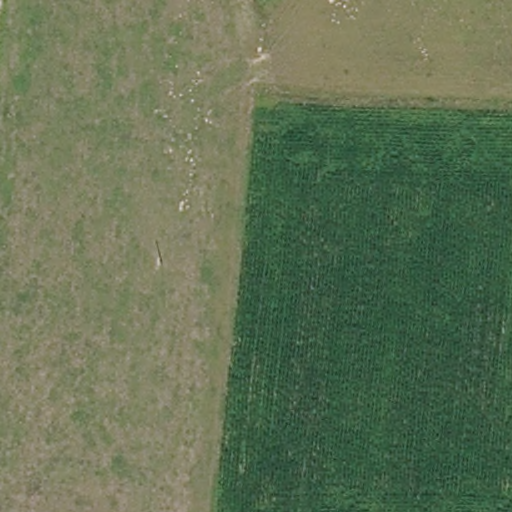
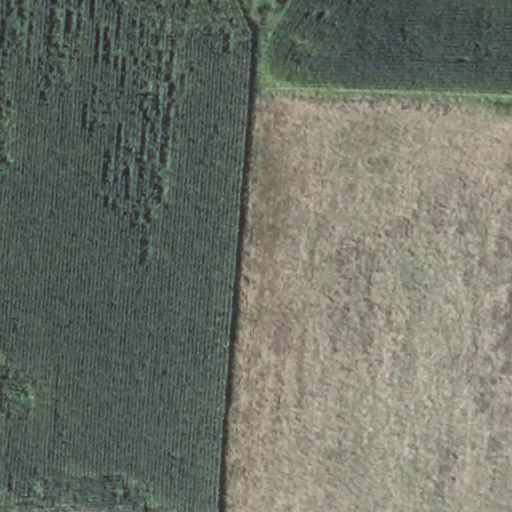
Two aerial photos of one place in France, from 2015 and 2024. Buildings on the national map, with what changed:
[]

